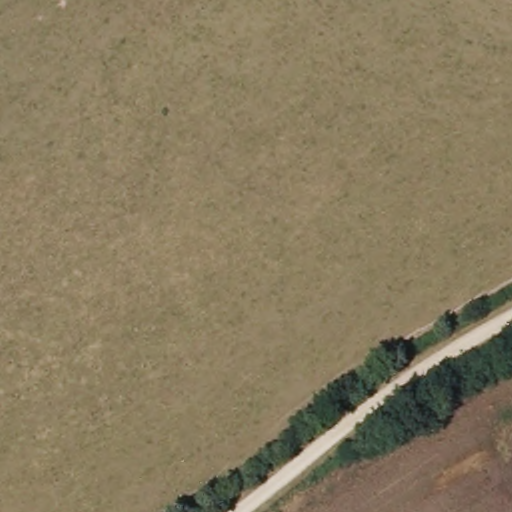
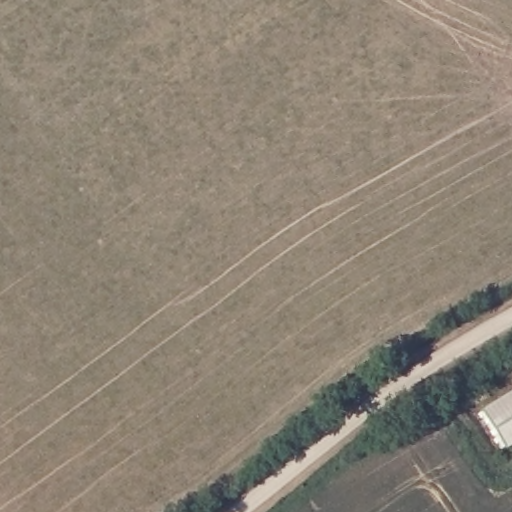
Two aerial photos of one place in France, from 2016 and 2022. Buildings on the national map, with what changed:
new [(506,447),(481,410),(512,390),(512,443),(506,447)]

